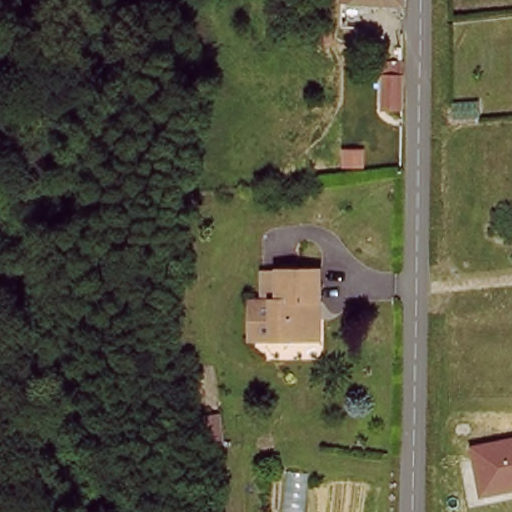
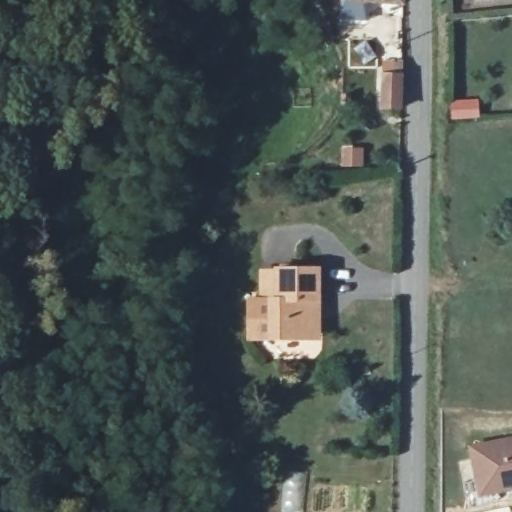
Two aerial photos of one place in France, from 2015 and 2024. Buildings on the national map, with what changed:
unchanged [(400,10),(342,9),(342,0),(401,0),(400,6),(400,10)]
unchanged [(385,112),(385,67),(402,67),(402,113),(385,112)]
unchanged [(324,268),(323,339),(277,338),(277,299),(266,299),(266,267),(324,268)]
unchanged [(477,499),(468,447),(512,439),(512,492),(477,499)]

